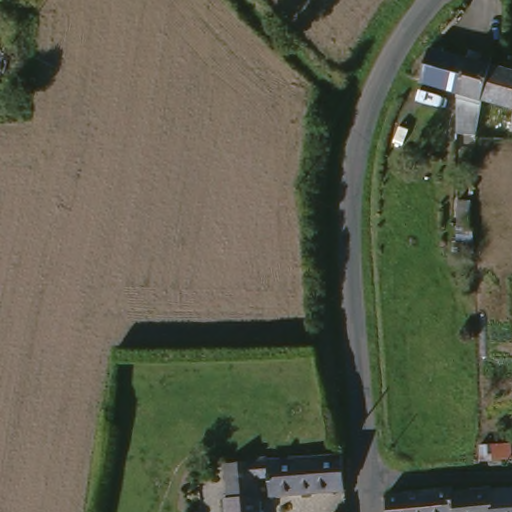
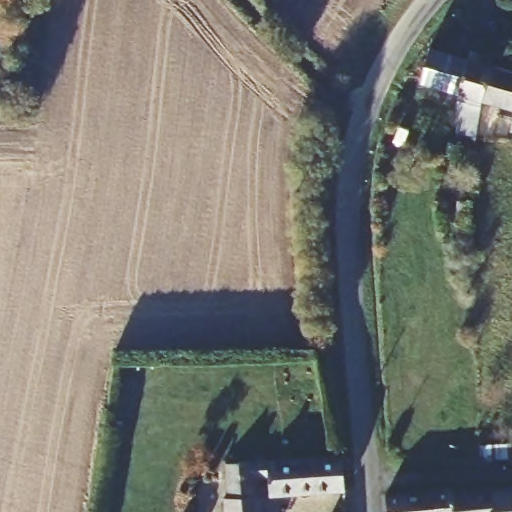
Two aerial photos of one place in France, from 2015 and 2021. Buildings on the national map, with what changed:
unchanged [(472,39),(460,53),(480,57),(470,92),(432,82),(435,57),(456,27),(472,39)]
unchanged [(502,64),(498,76),(492,96),(490,105),(485,115),(482,131),(483,141),(457,137),(470,92),(480,57),(502,64)]
unchanged [(512,67),(512,101),(492,96),(498,76),(502,64),(512,67)]
unchanged [(448,194),(448,217),(437,218),(436,195),(448,194)]
unchanged [(353,448),(356,484),(273,490),(272,475),(258,476),(260,492),(266,491),(267,512),(230,512),(230,494),(237,493),(236,477),(235,477),(234,458),(345,449),(353,448)]
unchanged [(505,512),(399,512),(396,491),(403,491),(505,489),(505,512)]

